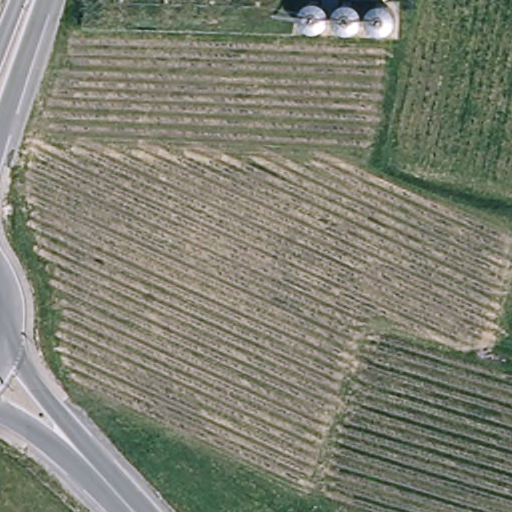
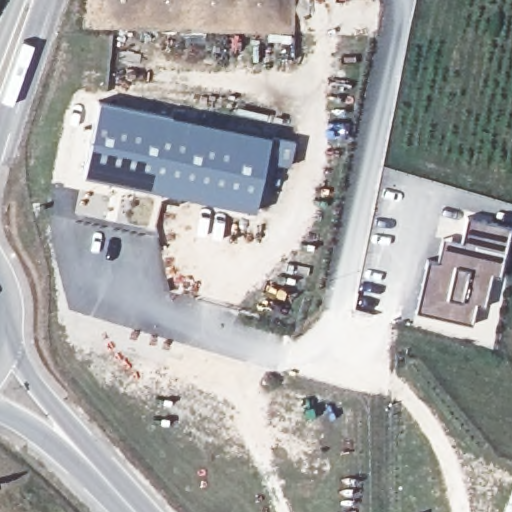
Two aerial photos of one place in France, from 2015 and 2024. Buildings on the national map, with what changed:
unchanged [(295,0),(296,6),(295,34),(83,29),(83,0),(295,0)]
demolished [(302,0),(395,0),(400,31),(303,32),(302,0)]
new [(98,101),(271,136),(256,212),(83,176),(98,101)]
new [(273,138),(298,143),(293,166),(268,161),(273,138)]
new [(441,261),(447,237),(465,242),(471,216),(512,226),(512,241),(504,277),(496,275),(488,307),(479,305),(475,325),(418,311),(431,258),(441,261)]
new [(512,502),(512,512),(509,512),(512,502)]

